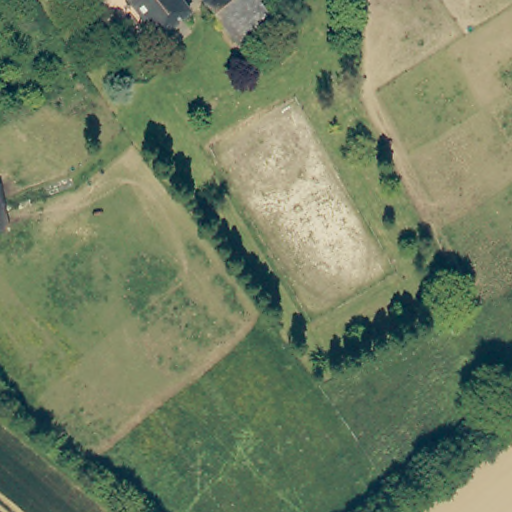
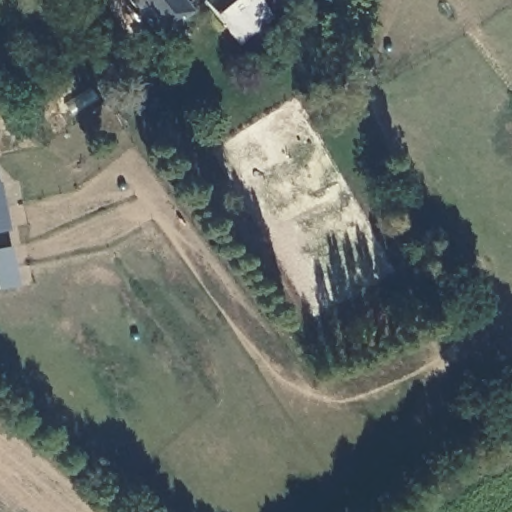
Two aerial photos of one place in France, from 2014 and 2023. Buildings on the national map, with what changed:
unchanged [(161,36),(135,0),(184,0),(193,14),(161,36)]
unchanged [(246,43),(208,3),(212,0),(264,0),(277,14),(246,43)]
unchanged [(13,230),(0,232),(0,186),(5,186),(13,230)]
new [(0,291),(0,249),(11,247),(18,287),(0,291)]

